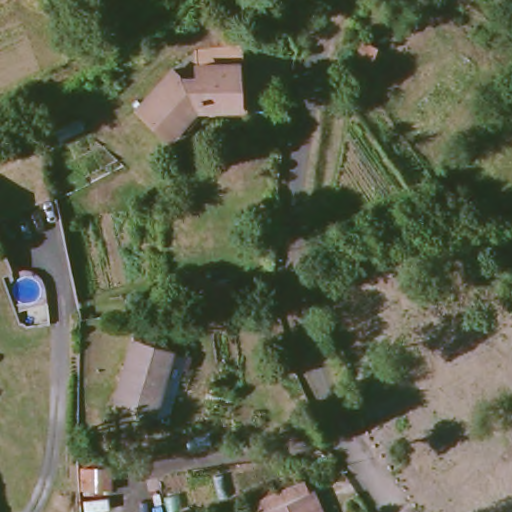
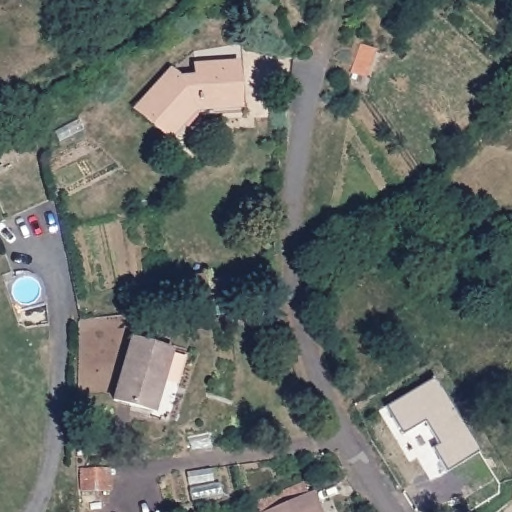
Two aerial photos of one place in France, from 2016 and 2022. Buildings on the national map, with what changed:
unchanged [(136,105),(172,76),(177,83),(198,78),(194,52),(231,40),(237,103),(197,109),(165,135),(136,105)]
unchanged [(350,70),(357,41),(377,44),(370,74),(350,70)]
unchanged [(184,304),(182,275),(206,272),(207,279),(231,275),(234,299),(184,304)]
unchanged [(172,345),(154,406),(116,393),(135,333),(172,345)]
new [(442,384),(484,463),(447,482),(433,454),(439,451),(428,429),(405,442),(389,412),(442,384)]
unchanged [(117,453),(117,474),(85,477),(84,455),(117,453)]
unchanged [(320,508),(321,512),(258,512),(254,504),(304,483),(310,496),(314,494),(320,508)]

